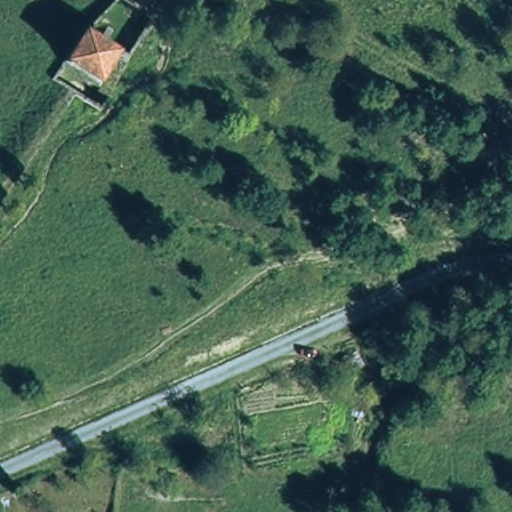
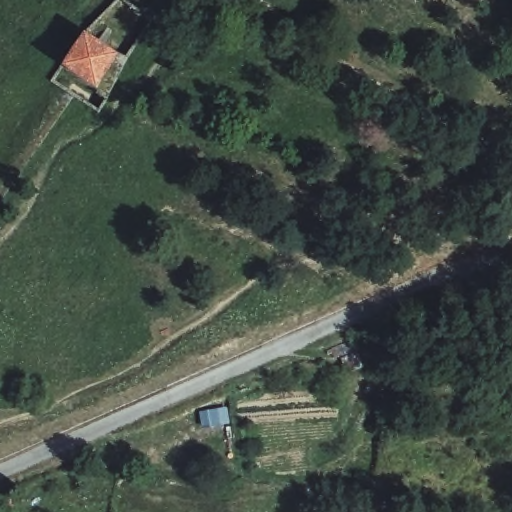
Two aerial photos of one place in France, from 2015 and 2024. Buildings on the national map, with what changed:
unchanged [(132,51),(103,91),(61,63),(88,22),(132,51)]

